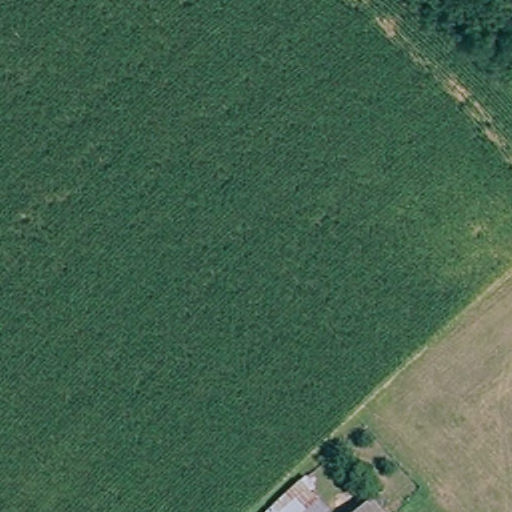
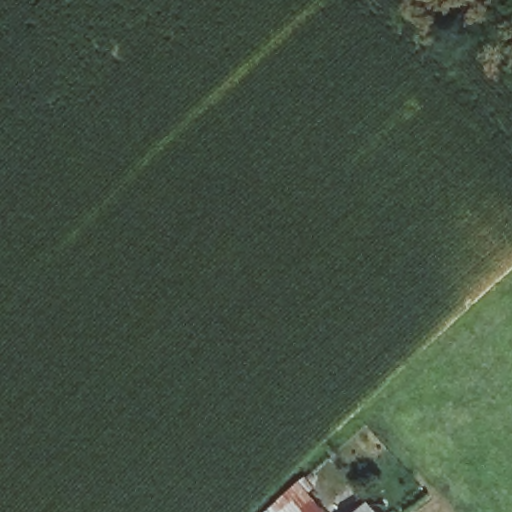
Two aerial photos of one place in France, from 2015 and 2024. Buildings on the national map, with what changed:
unchanged [(319,499),(329,512),(267,512),(306,476),(323,496),(319,499)]
unchanged [(370,502),(379,512),(359,512),(370,502)]

